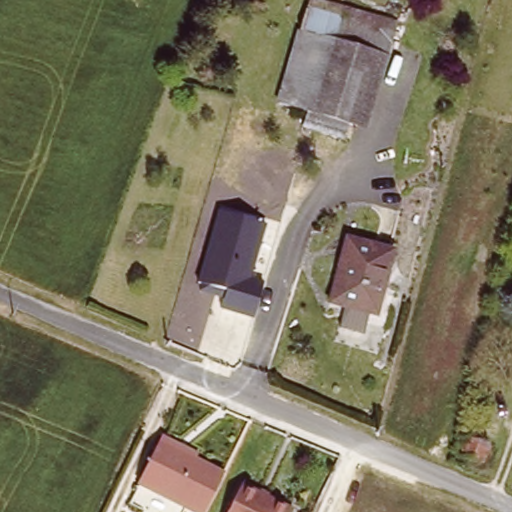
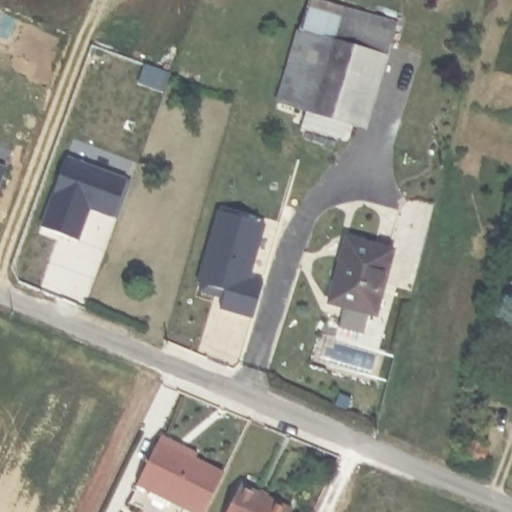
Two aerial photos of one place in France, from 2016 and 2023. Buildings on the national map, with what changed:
unchanged [(346,145),(305,129),(310,118),(276,112),(312,0),(320,0),(344,7),(346,0),(369,0),(409,11),(375,138),(347,134),(346,145)]
new [(145,63),(166,70),(160,89),(138,81),(145,63)]
new [(67,157),(127,179),(115,218),(90,210),(78,240),(42,226),(67,157)]
new [(6,166),(0,184),(0,164),(6,166)]
unchanged [(220,311),(224,290),(197,284),(218,209),(264,224),(248,282),(263,287),(253,318),(220,311)]
unchanged [(349,240),(362,244),(395,253),(377,318),(331,305),(349,240)]
unchanged [(215,512),(202,512),(148,484),(170,442),(171,439),(205,457),(204,459),(234,474),(215,512)]
unchanged [(466,442),(483,449),(478,463),(460,456),(466,442)]
unchanged [(245,488),(254,493),(293,512),(233,512),(245,488)]

